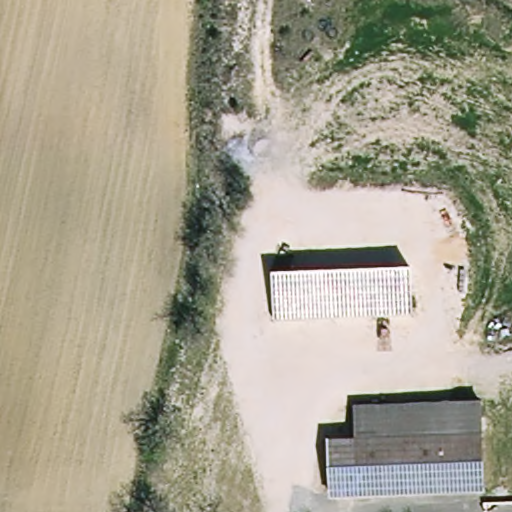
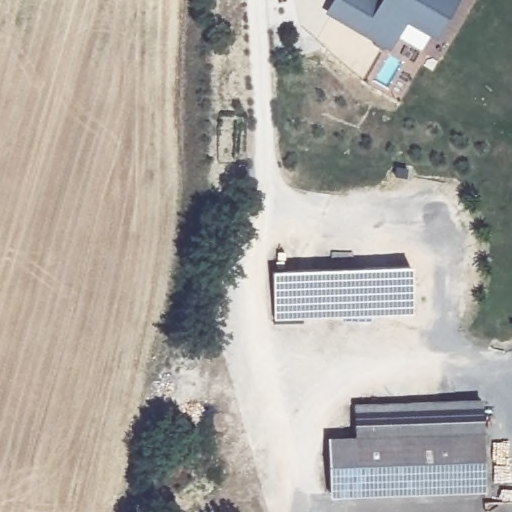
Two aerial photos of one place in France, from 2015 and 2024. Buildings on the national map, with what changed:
new [(367,0),(386,10),(391,0),(455,0),(435,37),(405,21),(389,50),(334,21),(345,0),(367,0)]
unchanged [(408,263),(412,311),(274,321),(270,274),(408,263)]
unchanged [(355,406),(481,396),(481,400),(482,428),(358,438),(355,406)]
unchanged [(482,428),(485,485),(361,494),(358,438),(482,428)]
unchanged [(361,494),(337,495),(333,439),(358,438),(361,494)]

